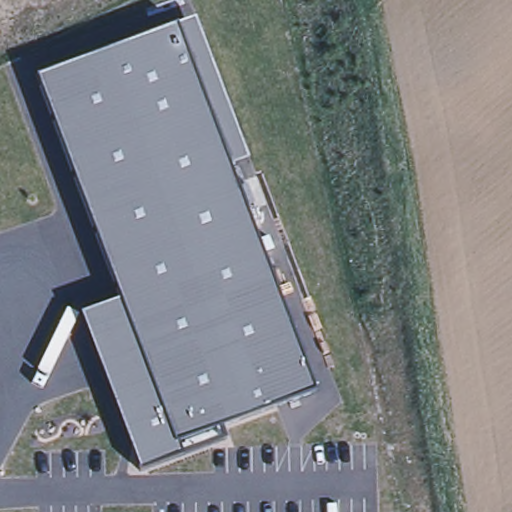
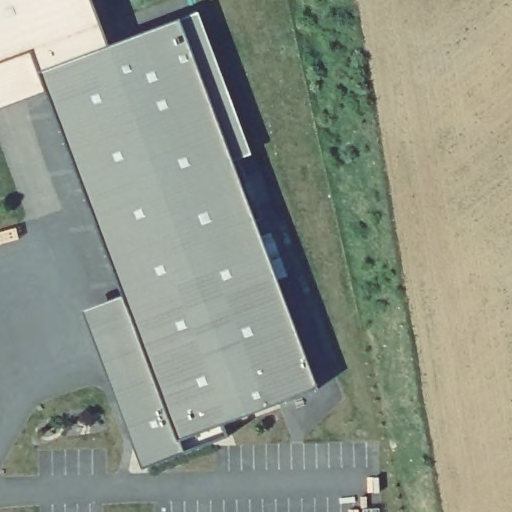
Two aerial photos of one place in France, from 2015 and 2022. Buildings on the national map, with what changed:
new [(46,90),(0,108),(0,0),(90,0),(108,49),(40,75),(46,90)]
unchanged [(121,296),(40,75),(178,22),(198,15),(251,156),(232,162),(314,386),(218,425),(223,440),(140,470),(84,310),(121,296)]

